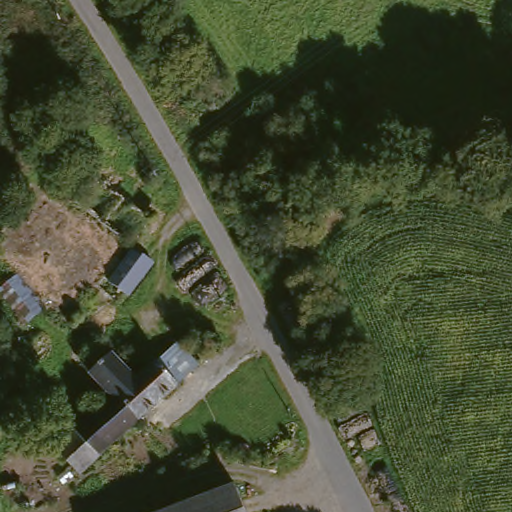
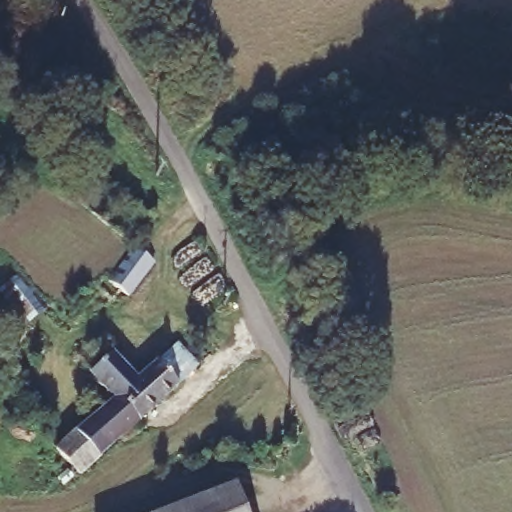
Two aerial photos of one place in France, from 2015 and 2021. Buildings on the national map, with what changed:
unchanged [(236,160),(243,157),(252,153),(263,175),(256,178),(248,182),(236,160)]
unchanged [(74,185),(96,161),(125,185),(106,208),(74,185)]
unchanged [(106,208),(125,185),(158,213),(141,236),(106,208)]
unchanged [(126,251),(145,266),(119,303),(102,290),(126,251)]
unchanged [(33,322),(1,292),(21,272),(51,304),(33,322)]
unchanged [(61,312),(73,298),(84,311),(75,320),(61,312)]
unchanged [(121,348),(111,357),(86,377),(71,358),(103,332),(121,348)]
unchanged [(86,377),(111,357),(133,385),(179,350),(201,377),(166,402),(133,430),(109,403),(86,377)]
unchanged [(91,419),(109,403),(133,430),(71,480),(55,465),(47,457),(91,419)]
unchanged [(231,486),(241,512),(162,512),(231,486)]

